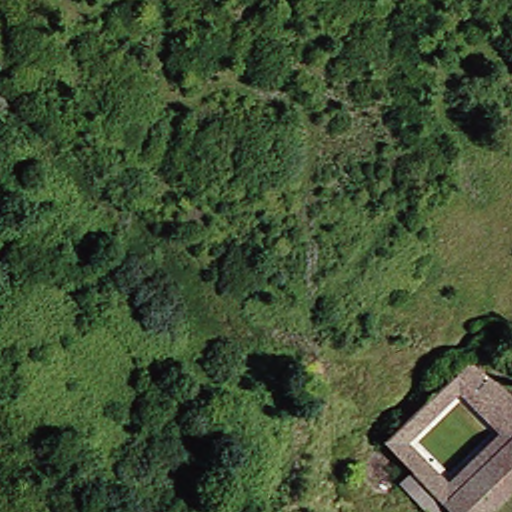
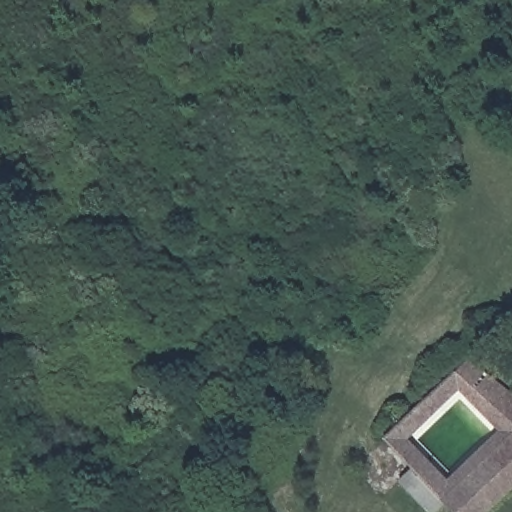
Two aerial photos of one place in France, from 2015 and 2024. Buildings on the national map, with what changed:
unchanged [(439,509),(437,512),(417,512),(391,484),(404,473),(377,442),(463,363),(512,404),(512,491),(489,512),(441,512),(439,509)]

